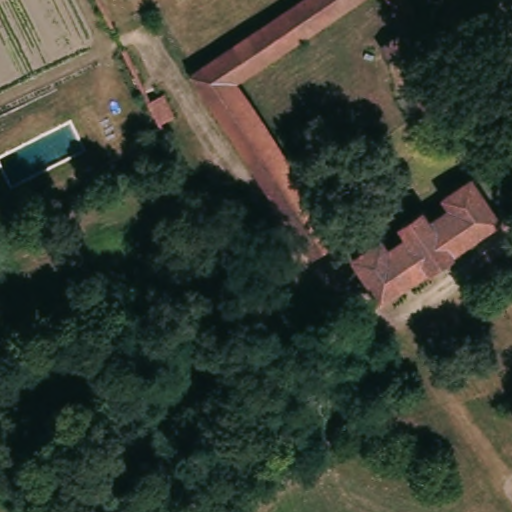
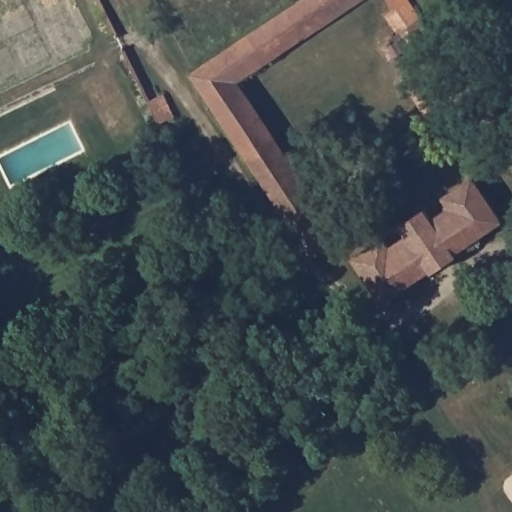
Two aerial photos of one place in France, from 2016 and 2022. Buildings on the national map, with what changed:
unchanged [(267,27),(307,0),(365,0),(238,88),(343,242),(314,261),(189,81),(267,27)]
unchanged [(433,41),(391,67),(383,54),(402,41),(388,22),(398,16),(387,0),(406,0),(433,41)]
unchanged [(465,35),(445,47),(430,26),(449,14),(465,35)]
unchanged [(457,80),(443,91),(424,63),(438,53),(457,80)]
unchanged [(450,253),(451,257),(428,273),(425,268),(378,301),(348,257),(377,239),(384,248),(402,236),(396,226),(420,209),(427,219),(444,206),(439,196),(466,177),(496,220),(450,253)]

